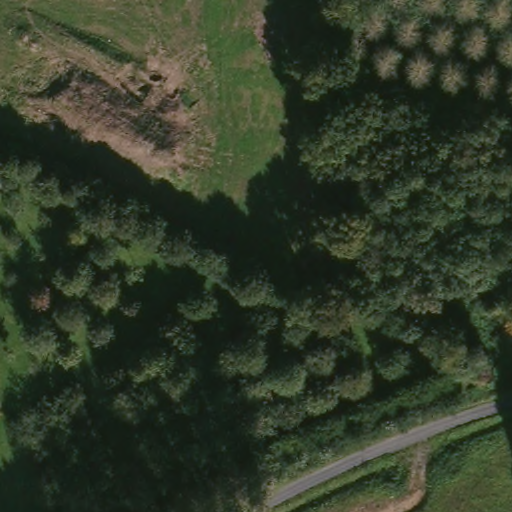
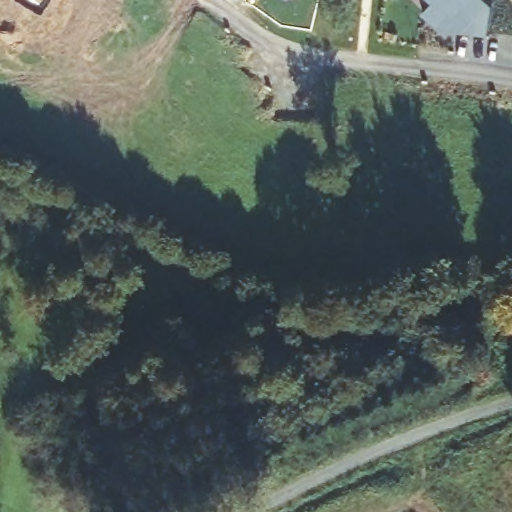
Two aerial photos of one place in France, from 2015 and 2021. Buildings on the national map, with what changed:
new [(438,25),(419,7),(421,6),(427,0),(490,0),(485,30),(438,25)]

